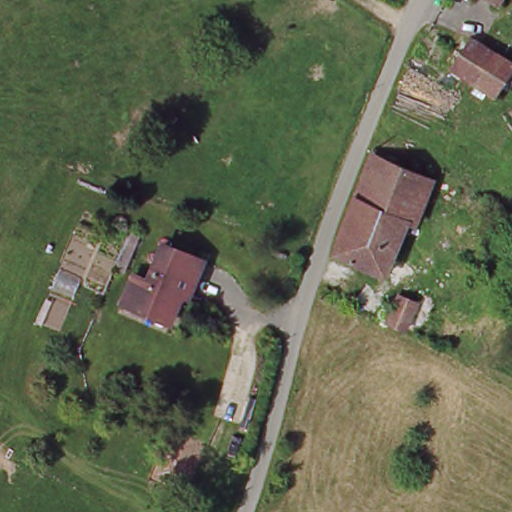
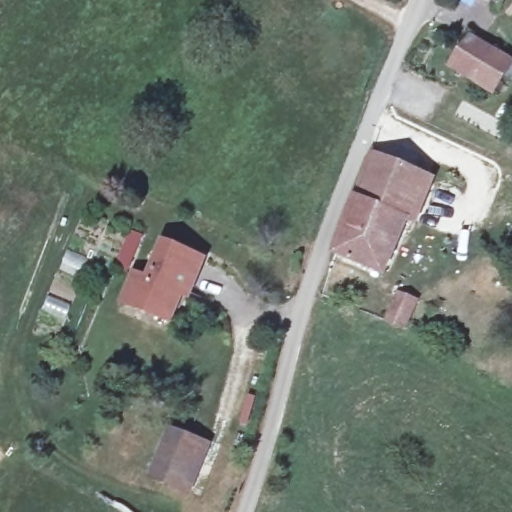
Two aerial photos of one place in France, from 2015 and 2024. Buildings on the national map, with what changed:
unchanged [(495,8),(483,0),(499,0),(495,8)]
unchanged [(466,40),(512,69),(493,96),(450,67),(466,40)]
unchanged [(371,158),(428,185),(413,230),(406,227),(386,281),(337,258),(371,158)]
unchanged [(160,245),(199,261),(188,291),(182,288),(171,313),(145,302),(141,310),(120,302),(132,275),(146,280),(160,245)]
unchanged [(412,340),(383,325),(395,301),(427,316),(414,342),(412,340)]
new [(190,494),(147,477),(166,427),(210,442),(190,494)]

